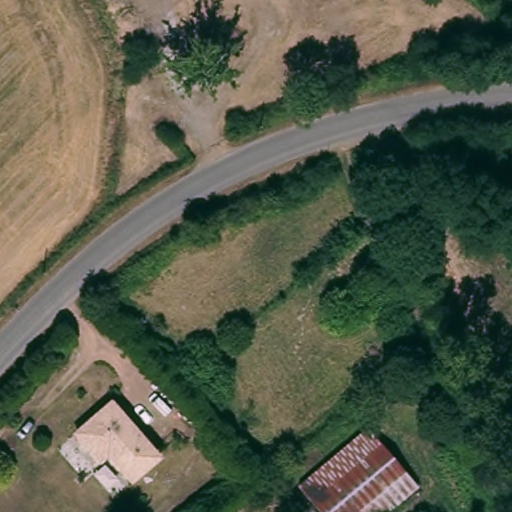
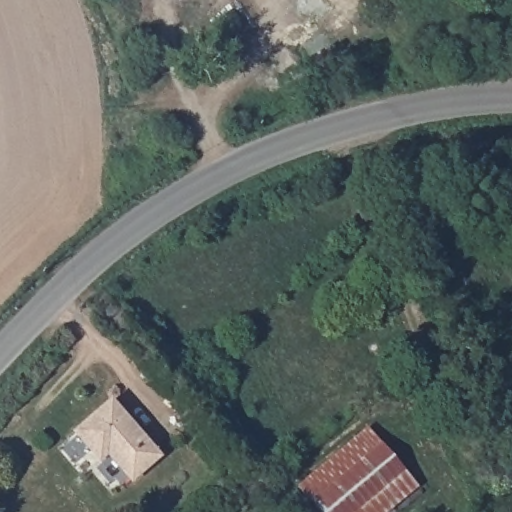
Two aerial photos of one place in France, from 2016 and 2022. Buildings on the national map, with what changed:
unchanged [(98,450),(81,432),(116,403),(162,457),(136,478),(114,451),(106,458),(98,450)]
unchanged [(393,512),(317,512),(299,490),(372,432),(420,491),(393,512)]

